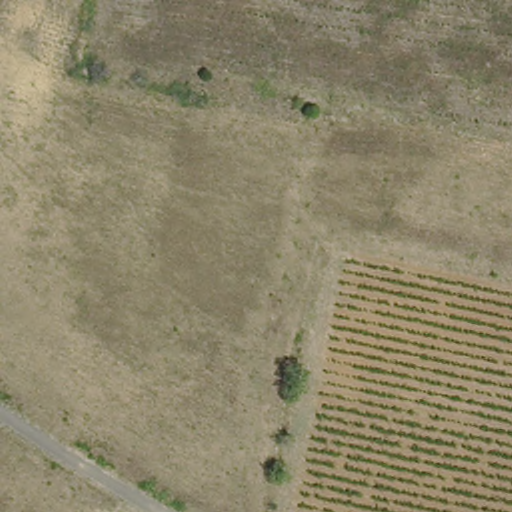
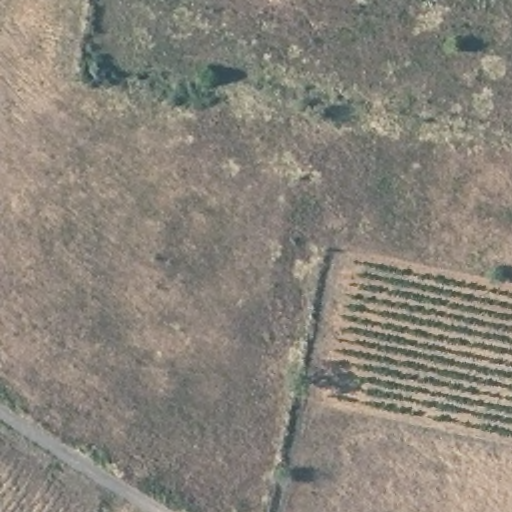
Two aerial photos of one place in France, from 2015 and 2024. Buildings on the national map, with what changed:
[]

